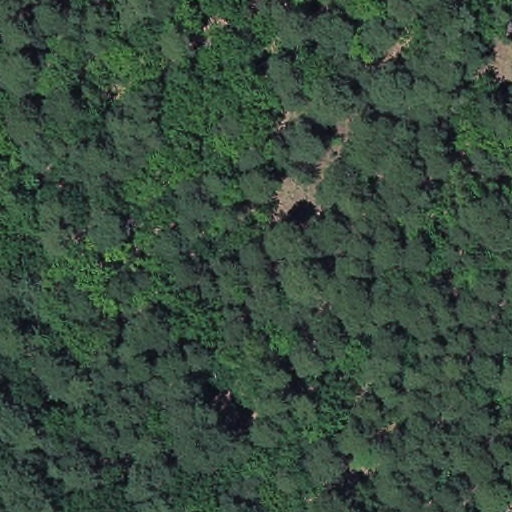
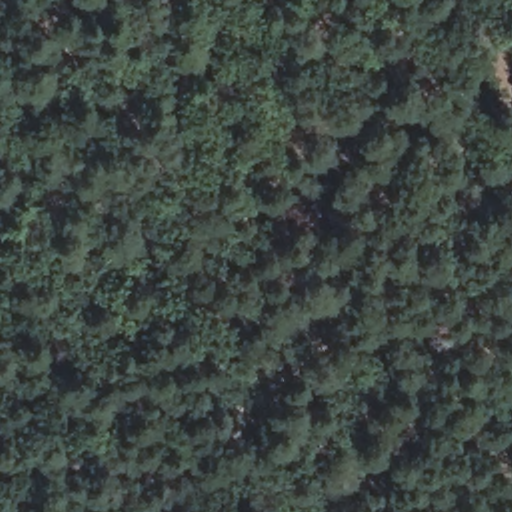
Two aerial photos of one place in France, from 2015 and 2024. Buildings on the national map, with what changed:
[]

